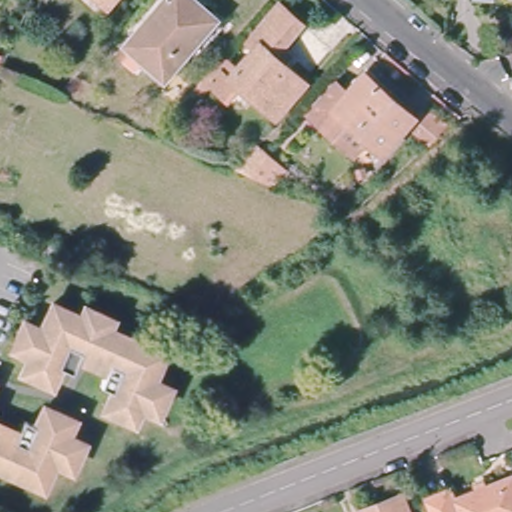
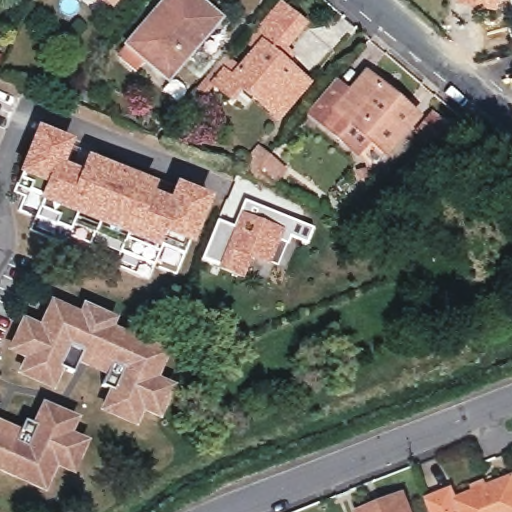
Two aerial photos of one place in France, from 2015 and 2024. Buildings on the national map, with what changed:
unchanged [(113,0),(119,0),(116,3),(113,0)]
unchanged [(164,0),(193,0),(223,25),(191,63),(184,56),(164,79),(126,46),(164,0)]
unchanged [(236,93),(232,98),(216,82),(227,69),(235,76),(236,74),(266,41),(258,34),(286,3),(307,22),(288,43),(296,50),(288,59),(312,81),(281,115),(256,93),(247,103),(236,93)]
unchanged [(333,131),(320,121),(323,116),(310,103),(332,77),(346,89),(365,69),(415,112),(382,146),(368,134),(353,150),(333,131)]
new [(39,128),(67,140),(57,164),(82,174),(88,158),(151,184),(146,197),(143,195),(142,199),(167,209),(177,185),(206,197),(183,253),(161,244),(153,264),(119,250),(123,240),(73,220),(69,230),(35,216),(43,195),(27,189),(31,182),(19,177),(39,128)]
unchanged [(263,140),(293,167),(276,186),(239,167),(263,140)]
new [(268,260),(249,252),(241,271),(202,256),(218,217),(234,223),(239,211),(245,197),(294,217),(313,225),(307,241),(290,234),(287,242),(286,241),(277,263),(268,260)]
unchanged [(37,350),(22,345),(35,317),(49,323),(56,306),(60,297),(89,310),(92,301),(121,312),(116,321),(143,334),(172,347),(168,355),(161,373),(175,379),(162,406),(148,400),(143,413),(114,400),(121,384),(109,379),(115,365),(73,346),(60,377),(31,364),(37,350)]
unchanged [(12,478),(0,472),(0,428),(17,436),(22,423),(34,428),(41,412),(69,425),(64,438),(77,444),(65,471),(51,464),(44,481),(39,490),(12,478)]
unchanged [(460,495),(512,475),(512,512),(438,512),(432,496),(457,487),(460,495)]
unchanged [(363,507),(382,501),(405,492),(407,499),(412,512),(365,512),(363,507)]

